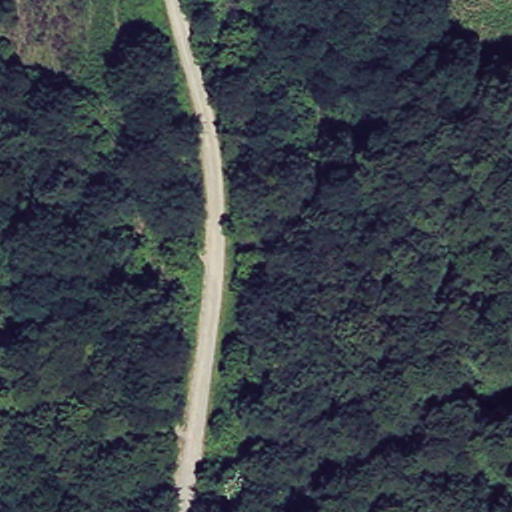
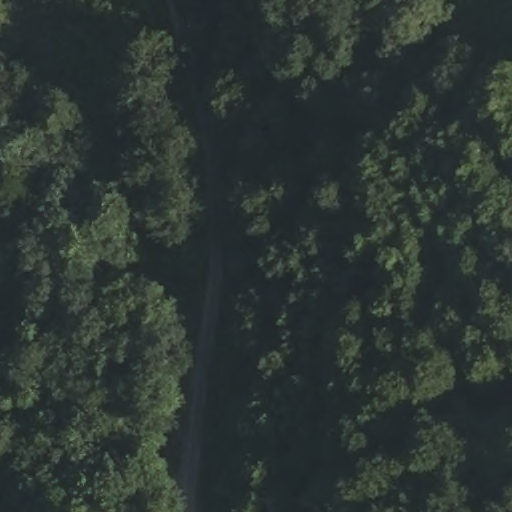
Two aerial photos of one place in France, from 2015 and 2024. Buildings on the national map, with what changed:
unchanged [(411,401),(434,432),(393,467),(369,440),(411,401)]

